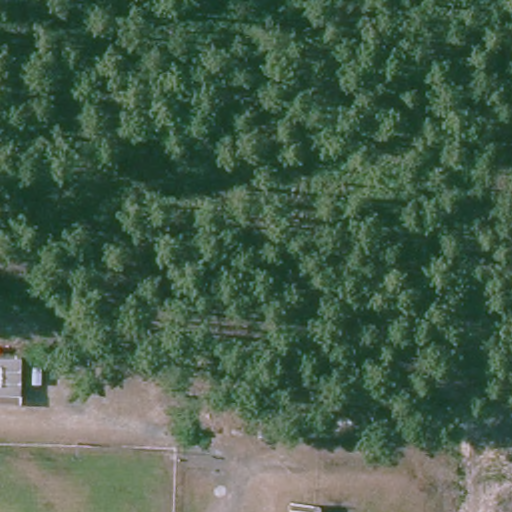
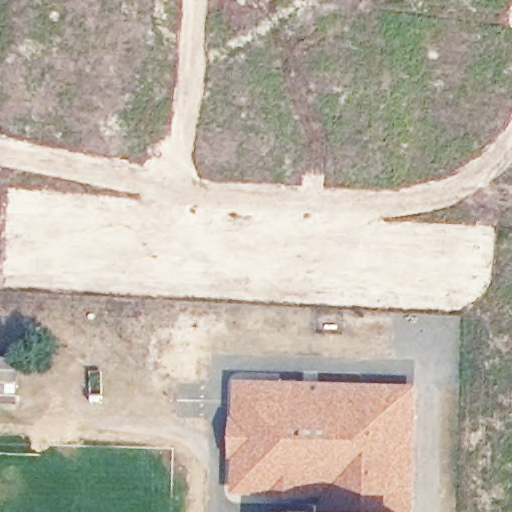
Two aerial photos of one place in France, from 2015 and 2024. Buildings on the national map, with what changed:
unchanged [(24,360),(22,397),(0,396),(0,359),(24,360)]
new [(319,512),(319,499),(309,500),(272,498),(271,493),(236,493),(235,458),(232,459),(233,418),(236,418),(239,381),(418,386),(419,512),(319,512)]
unchanged [(22,397),(22,405),(0,404),(0,396),(22,397)]

